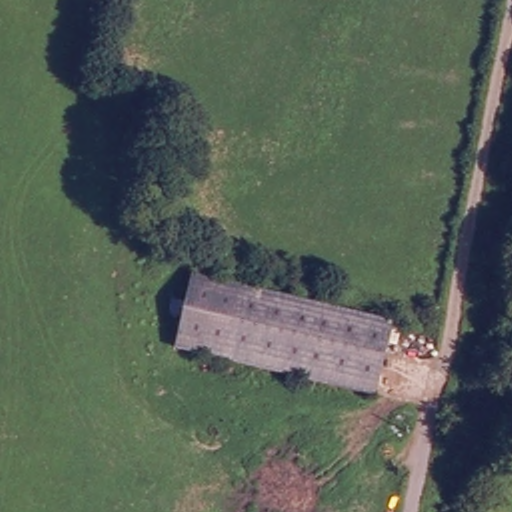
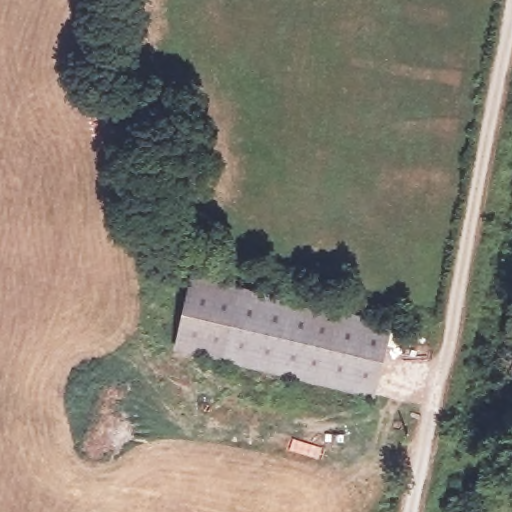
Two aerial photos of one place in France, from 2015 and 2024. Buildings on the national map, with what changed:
unchanged [(389,330),(372,398),(180,345),(198,277),(389,330)]

